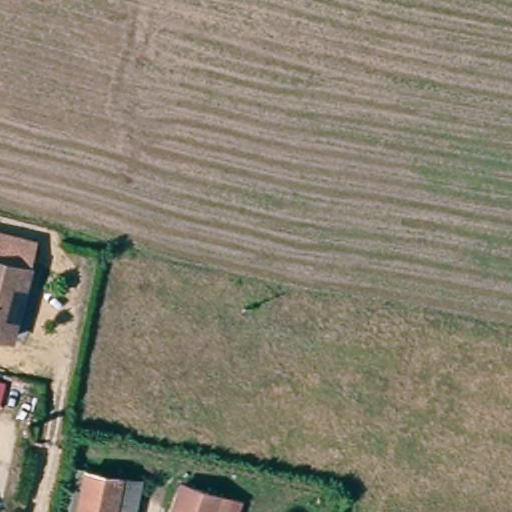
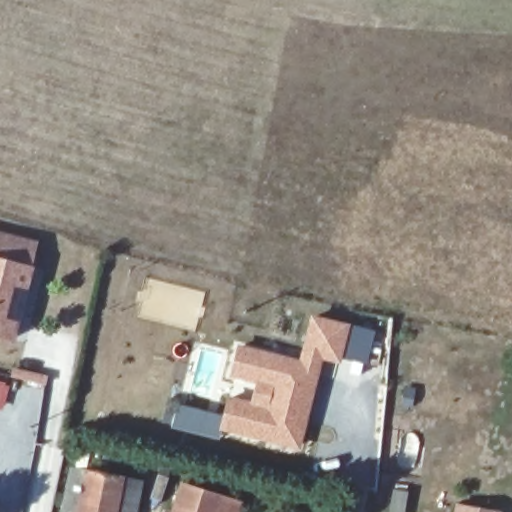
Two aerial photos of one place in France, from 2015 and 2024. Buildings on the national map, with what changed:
unchanged [(31,249),(6,340),(0,339),(0,241),(31,249)]
new [(221,414),(228,393),(264,403),(268,386),(229,376),(236,342),(298,359),(309,313),(350,323),(340,363),(321,359),(300,448),(221,429),(218,436),(171,426),(176,403),(221,414)]
unchanged [(118,475),(111,512),(77,512),(85,469),(118,475)]
unchanged [(138,479),(133,512),(111,512),(118,475),(138,479)]
unchanged [(229,501),(225,512),(173,512),(185,482),(229,501)]
unchanged [(239,505),(236,512),(225,512),(229,501),(239,505)]
unchanged [(478,512),(457,512),(457,509),(478,512)]

